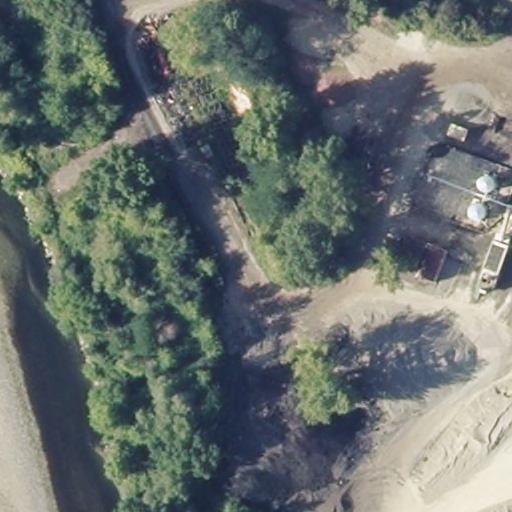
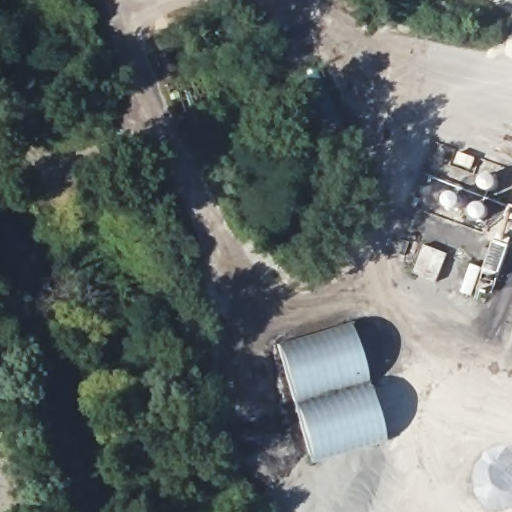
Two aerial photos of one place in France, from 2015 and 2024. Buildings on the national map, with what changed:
new [(385,440),(313,461),(280,349),(352,329),(385,440)]

